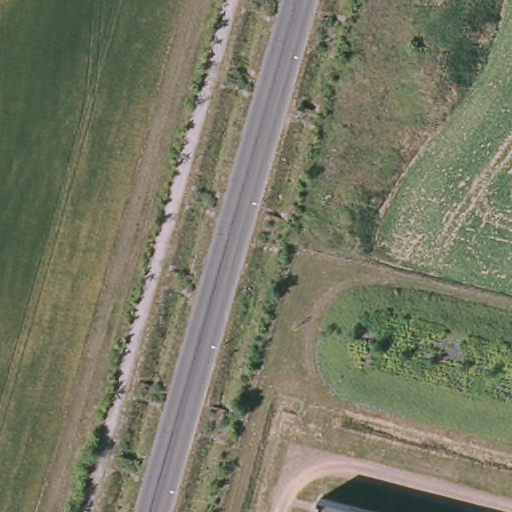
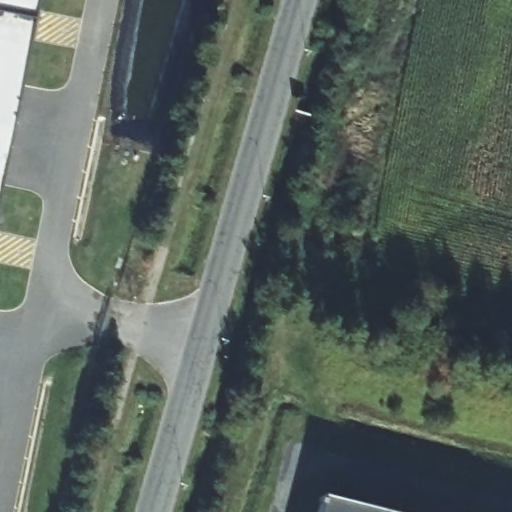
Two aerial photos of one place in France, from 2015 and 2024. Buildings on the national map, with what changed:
new [(0,185),(0,0),(37,0),(0,185)]
unchanged [(379,512),(320,512),(323,498),(379,512)]

